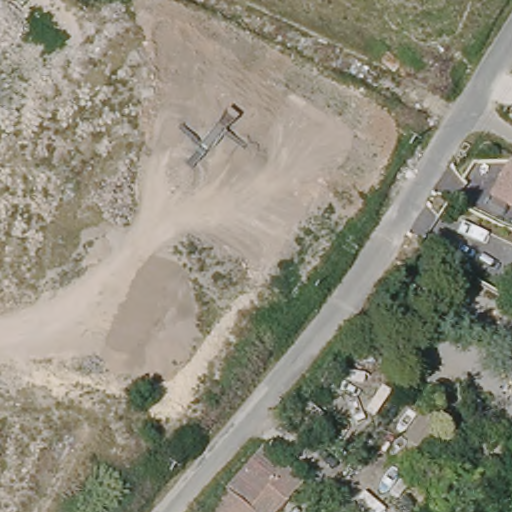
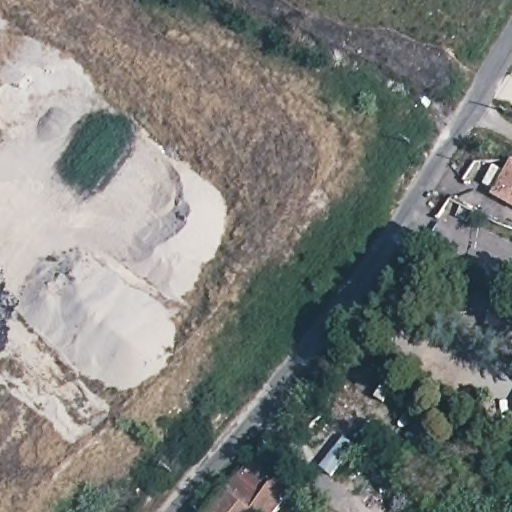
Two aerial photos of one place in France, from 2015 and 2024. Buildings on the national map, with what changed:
unchanged [(492,196),(512,160),(512,207),(492,196)]
unchanged [(298,486),(276,512),(242,512),(222,495),(235,480),(259,452),(298,486)]
unchanged [(207,512),(222,495),(242,512),(207,512)]

